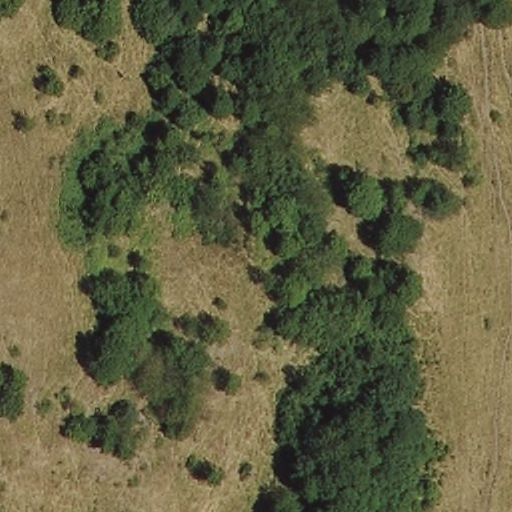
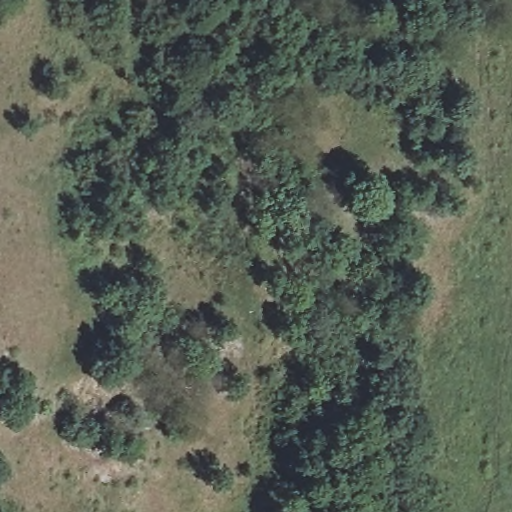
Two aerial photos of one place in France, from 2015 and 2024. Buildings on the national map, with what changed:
[]

